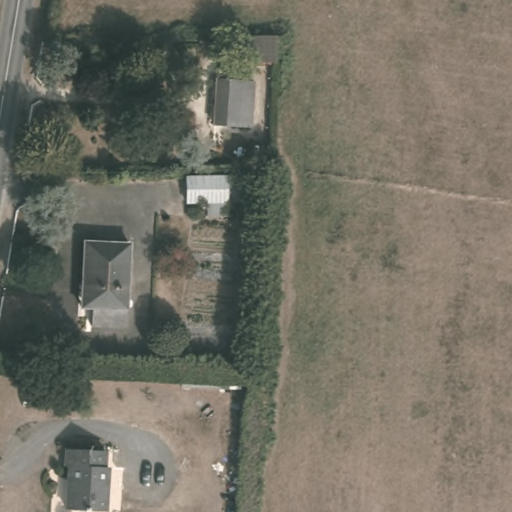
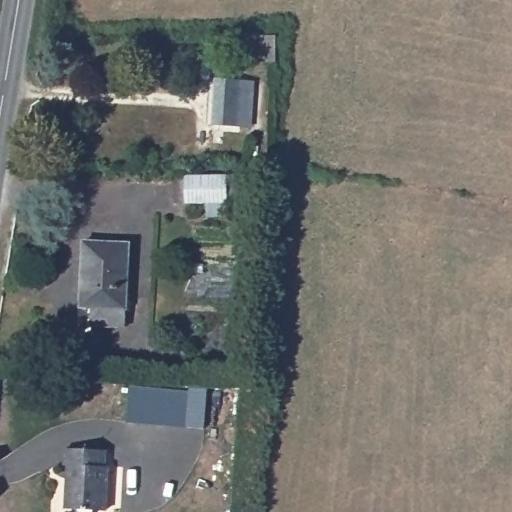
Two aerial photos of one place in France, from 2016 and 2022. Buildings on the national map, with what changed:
unchanged [(277,64),(252,63),(252,33),(280,33),(277,64)]
unchanged [(248,80),(245,126),(222,125),(225,80),(248,80)]
unchanged [(230,214),(210,215),(210,203),(188,202),(186,175),(229,174),(230,214)]
unchanged [(132,249),(124,327),(93,326),(94,307),(90,306),(92,285),(83,284),(88,245),(132,249)]
new [(127,423),(130,385),(190,390),(186,428),(127,423)]
unchanged [(66,465),(67,448),(107,448),(106,464),(111,464),(110,511),(69,509),(70,466),(66,465)]

